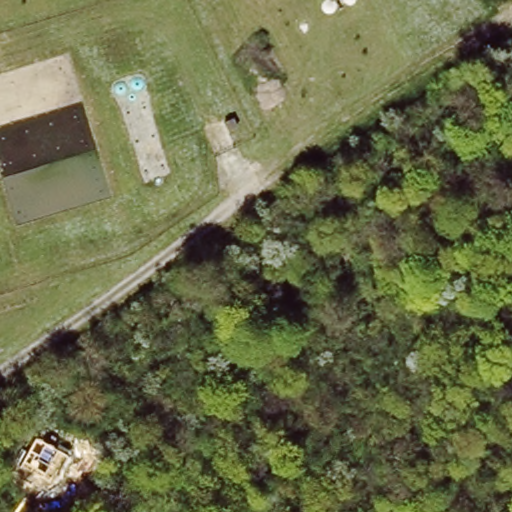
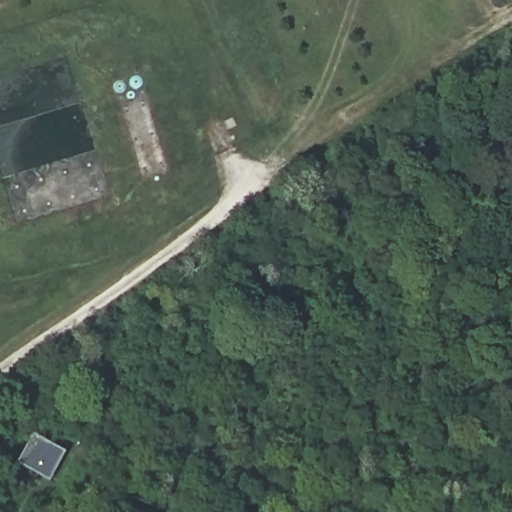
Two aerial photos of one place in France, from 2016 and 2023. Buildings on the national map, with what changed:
demolished [(49,477),(19,462),(33,433),(66,447),(49,477)]

